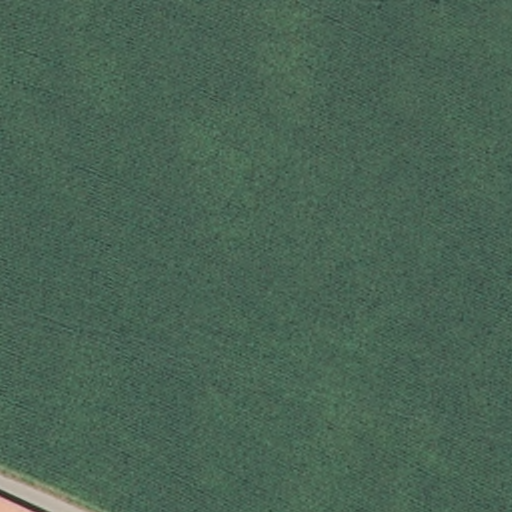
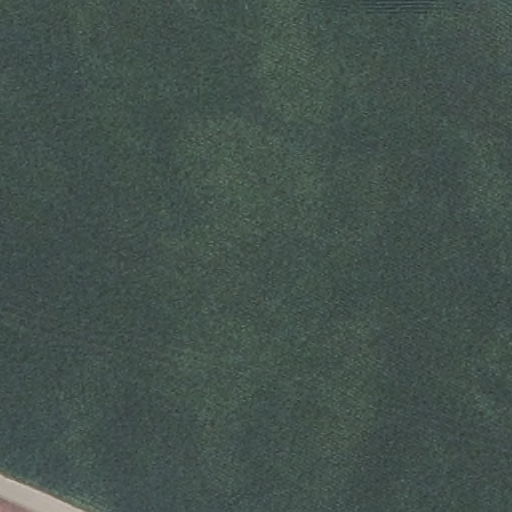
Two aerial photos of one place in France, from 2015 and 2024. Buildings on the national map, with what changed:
unchanged [(0,512),(0,508),(10,512),(0,512)]

